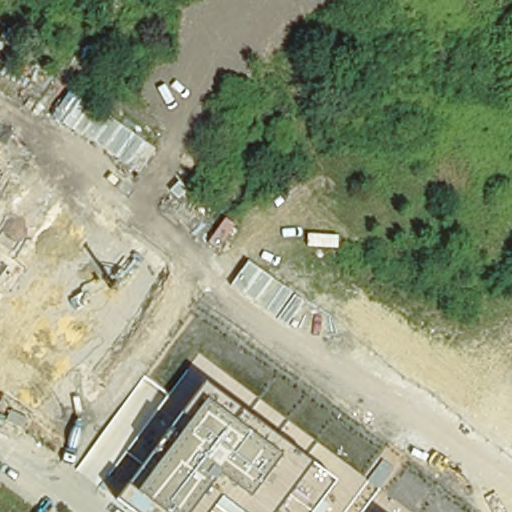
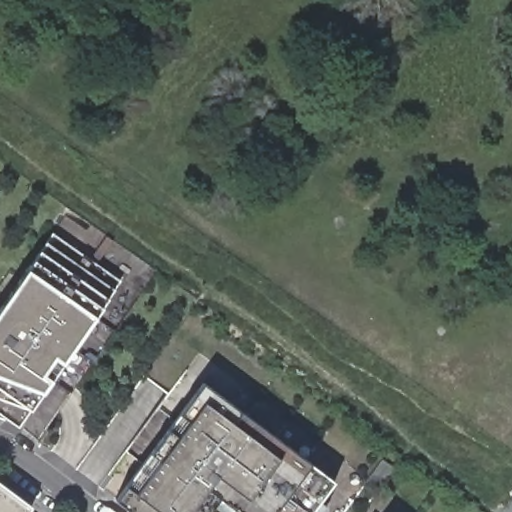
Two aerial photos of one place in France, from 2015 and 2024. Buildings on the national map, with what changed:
new [(107,296),(102,306),(95,315),(64,361),(52,378),(44,390),(31,409),(20,425),(0,417),(0,308),(29,266),(35,258),(41,250),(47,241),(55,232),(121,279),(113,289),(107,296)]
unchanged [(337,480),(321,498),(327,505),(323,512),(220,512),(213,507),(209,512),(132,512),(117,500),(203,385),(337,480)]
new [(0,480),(34,505),(28,512),(0,512),(0,480)]

